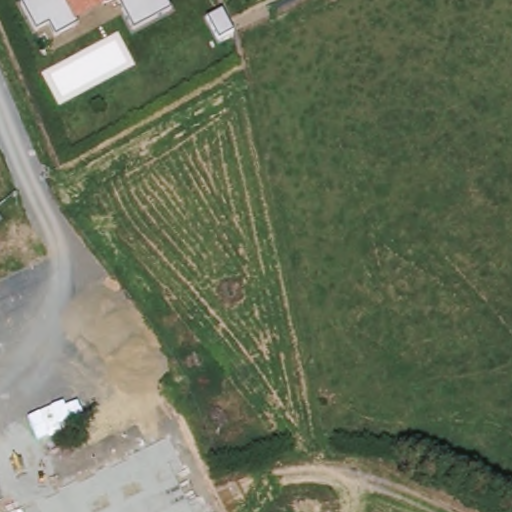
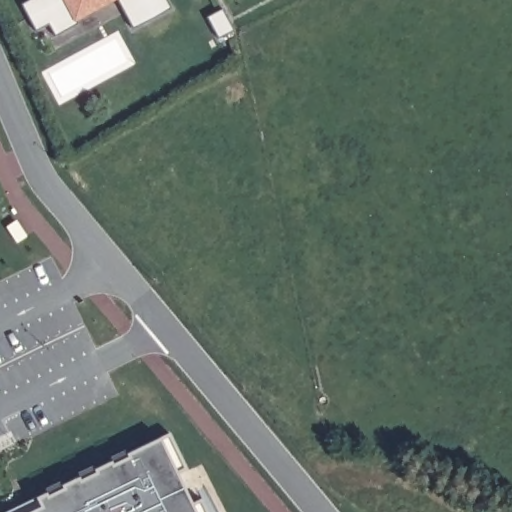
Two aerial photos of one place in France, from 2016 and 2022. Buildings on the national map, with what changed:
unchanged [(47,21),(38,27),(28,6),(38,0),(116,0),(55,33),(47,21)]
unchanged [(137,27),(121,0),(165,0),(170,7),(137,27)]
new [(36,498),(160,438),(168,433),(186,469),(175,474),(191,504),(200,500),(206,512),(9,512),(36,498)]

